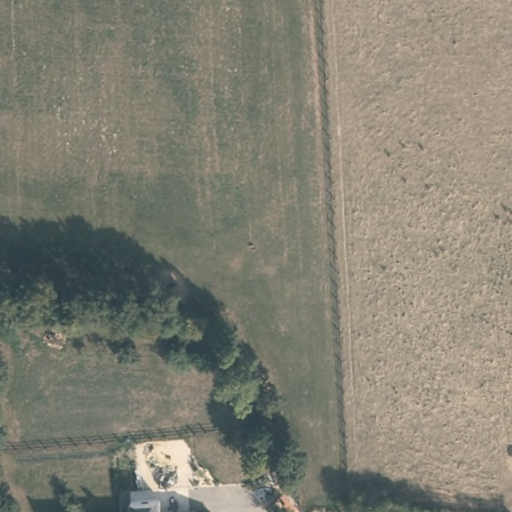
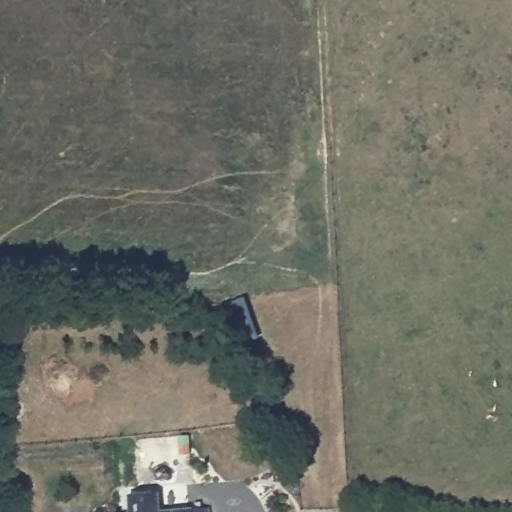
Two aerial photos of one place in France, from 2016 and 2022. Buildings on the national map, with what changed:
unchanged [(195,490),(197,512),(129,512),(128,494),(195,490)]

